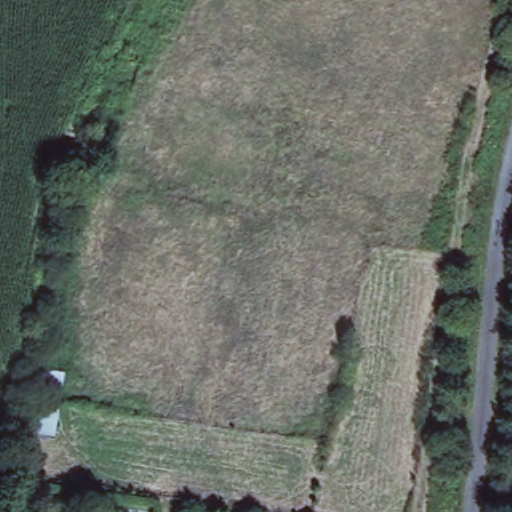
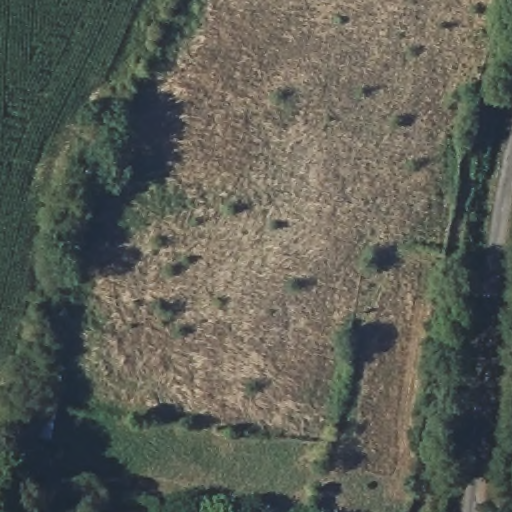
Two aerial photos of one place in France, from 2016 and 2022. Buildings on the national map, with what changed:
unchanged [(70,372),(62,438),(37,434),(46,368),(70,372)]

